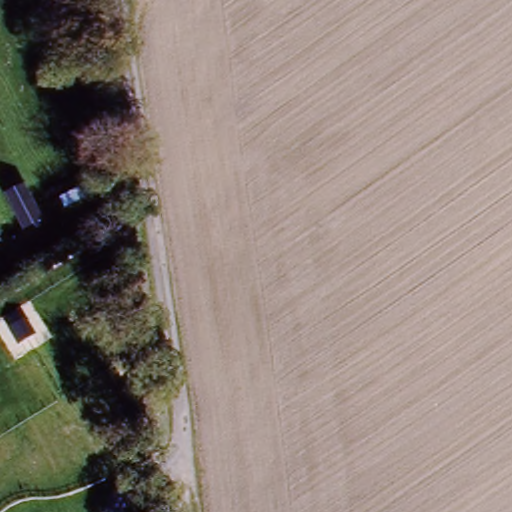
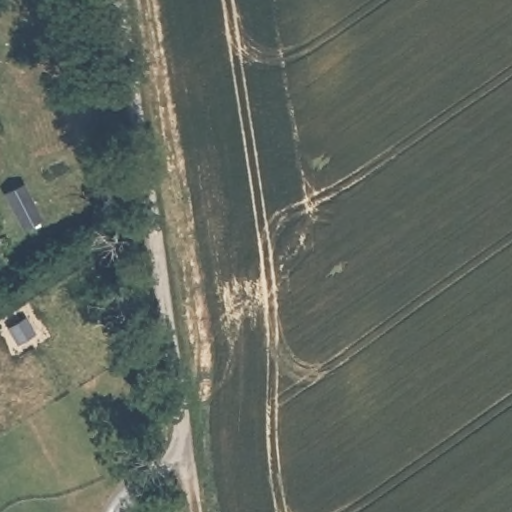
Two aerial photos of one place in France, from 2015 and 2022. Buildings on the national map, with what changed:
[]

